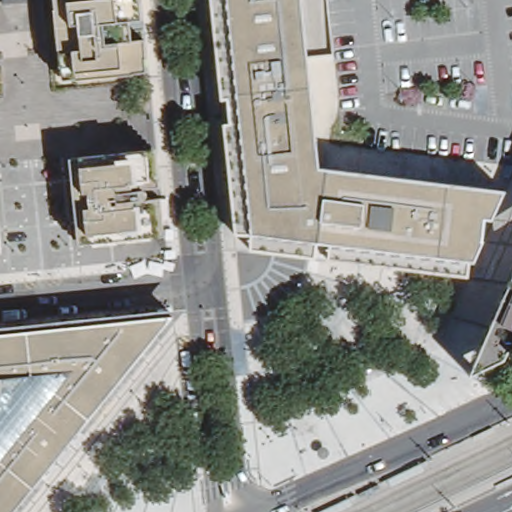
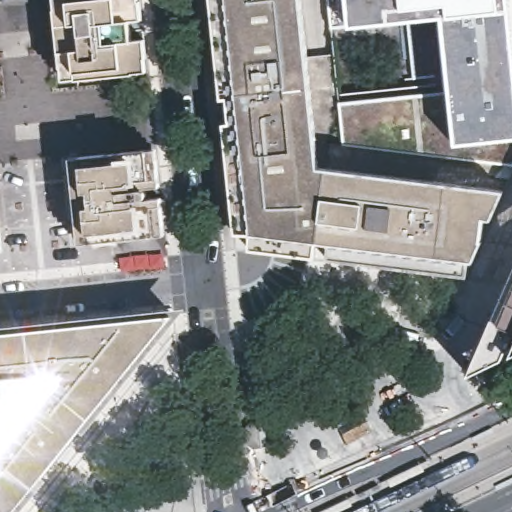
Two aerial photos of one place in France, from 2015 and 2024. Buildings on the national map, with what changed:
unchanged [(53,0),(139,0),(140,17),(127,17),(129,37),(142,36),(144,55),(146,71),(131,72),(76,77),(61,79),(59,61),(53,0)]
unchanged [(314,257),(250,250),(251,236),(236,234),(224,124),(237,122),(234,100),(222,101),(211,0),(300,0),(317,167),(325,168),(316,242),(314,257)]
new [(340,103),(418,95),(414,19),(331,27),(329,0),(512,0),(512,164),(343,145),(340,103)]
unchanged [(73,231),(66,167),(65,156),(76,155),(139,147),(149,147),(150,157),(153,184),(136,186),(136,188),(139,188),(141,188),(142,189),(143,191),(142,192),(140,193),(137,194),(137,197),(154,196),(157,222),(158,232),(148,232),(85,240),(75,241),(73,231)]
unchanged [(503,190),(472,262),(468,261),(466,276),(327,258),(329,244),(316,242),(325,168),(503,190)]
unchanged [(0,238),(2,249),(0,249),(0,233),(0,238)]
unchanged [(502,293),(508,297),(512,288),(512,351),(469,372),(502,293)]
unchanged [(171,317),(149,343),(9,512),(0,512),(0,334),(171,317)]
unchanged [(439,453),(443,459),(420,471),(418,463),(439,453)]
unchanged [(405,470),(410,475),(380,490),(378,482),(405,470)]
unchanged [(365,488),(370,495),(347,506),(345,498),(365,488)]

